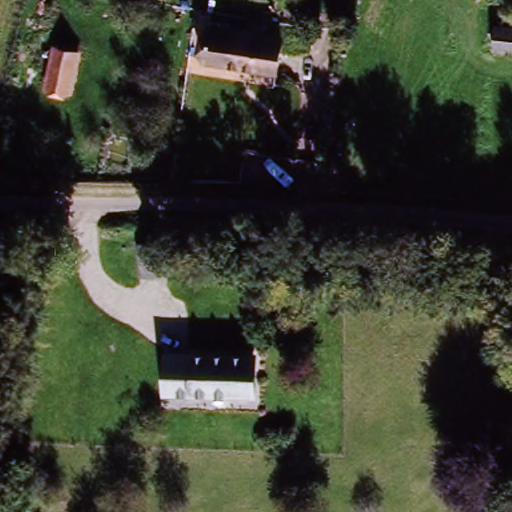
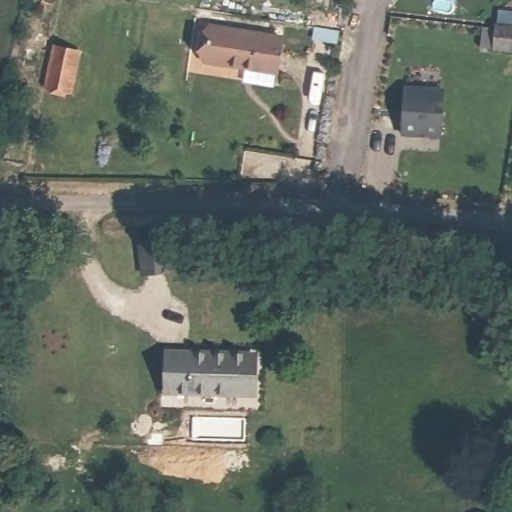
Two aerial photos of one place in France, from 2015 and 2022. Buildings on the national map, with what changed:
unchanged [(499,27),(512,29),(512,53),(495,51),(499,27)]
unchanged [(205,28),(275,39),(271,73),(200,62),(205,28)]
unchanged [(67,95),(45,90),(52,55),(75,60),(67,95)]
new [(446,88),(445,138),(402,135),(405,85),(446,88)]
unchanged [(161,278),(134,275),(137,244),(164,246),(161,278)]
unchanged [(254,405),(190,400),(191,389),(167,387),(169,356),(257,363),(254,405)]

